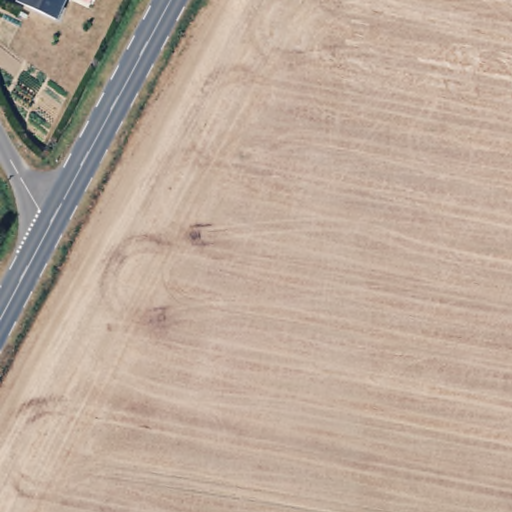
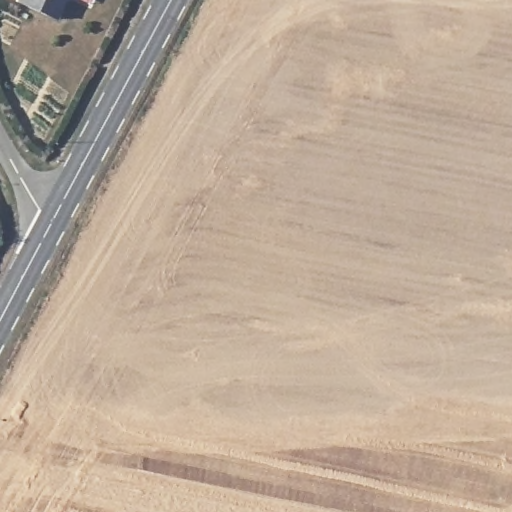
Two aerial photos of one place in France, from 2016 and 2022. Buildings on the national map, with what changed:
unchanged [(16,0),(64,0),(55,18),(16,0)]

